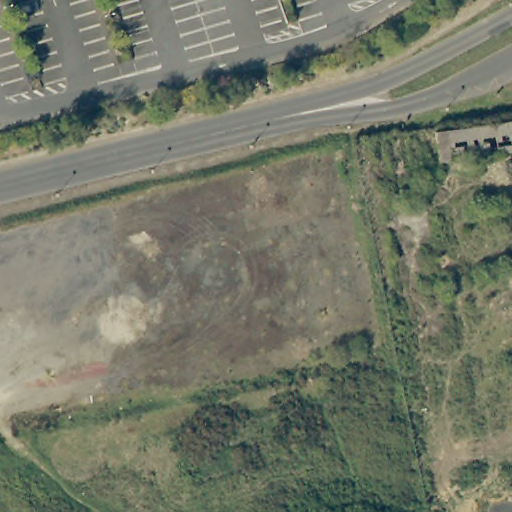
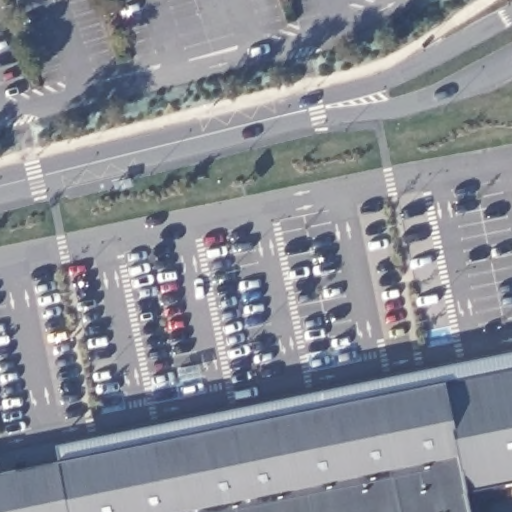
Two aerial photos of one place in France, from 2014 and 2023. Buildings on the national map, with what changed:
demolished [(436,134),(512,122),(512,151),(440,162),(436,134)]
new [(57,460),(54,443),(512,351),(512,481),(467,490),(447,380),(57,460)]
new [(0,512),(0,471),(447,380),(471,512),(0,512)]

